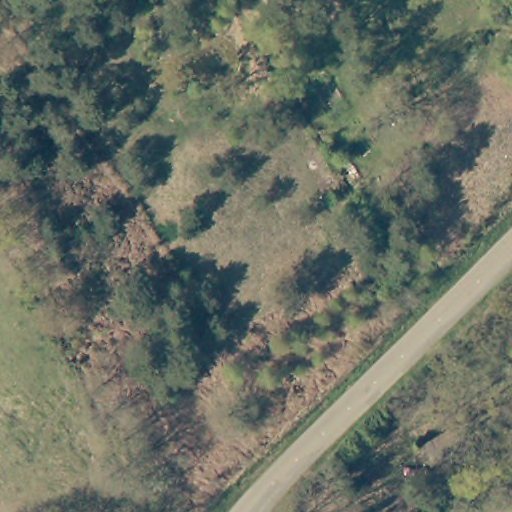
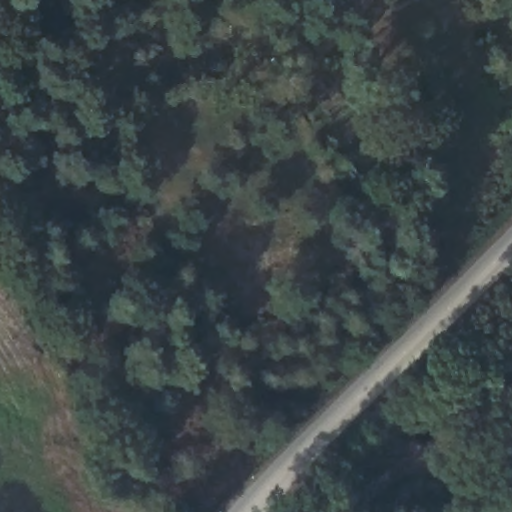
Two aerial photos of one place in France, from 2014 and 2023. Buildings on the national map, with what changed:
unchanged [(454,438),(430,450),(420,432),(446,420),(454,438)]

